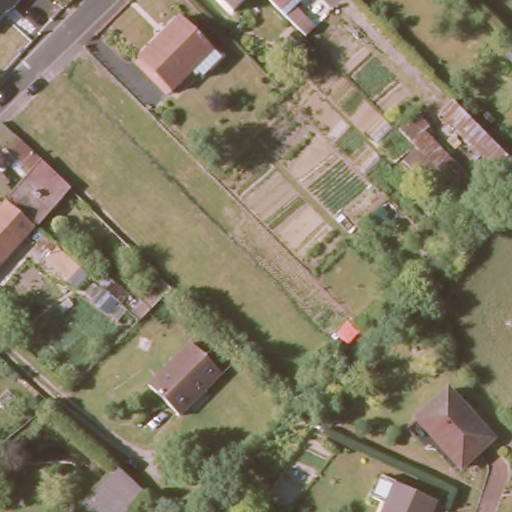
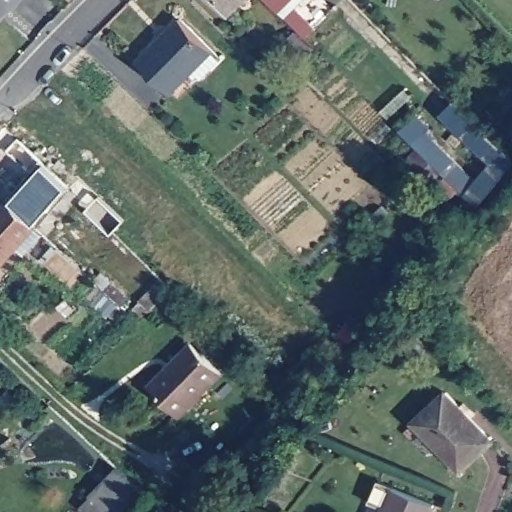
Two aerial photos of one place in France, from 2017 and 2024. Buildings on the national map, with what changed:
unchanged [(5,14),(0,19),(0,0),(21,0),(15,8),(5,14)]
unchanged [(232,11),(221,0),(243,0),(232,11)]
unchanged [(295,2),(315,21),(304,31),(296,23),(273,0),(297,0),(295,2)]
unchanged [(141,57),(184,14),(216,47),(172,89),(141,57)]
unchanged [(461,91),(512,134),(512,158),(500,170),(443,116),(461,91)]
unchanged [(40,170),(15,146),(0,131),(0,130),(10,120),(26,136),(50,160),(74,183),(44,214),(20,190),(40,170)]
unchanged [(20,183),(13,189),(0,177),(0,169),(2,166),(20,183)]
unchanged [(39,220),(0,264),(0,213),(16,195),(39,220)]
unchanged [(75,263),(65,274),(43,254),(53,243),(75,263)]
unchanged [(135,294),(155,272),(166,283),(146,304),(135,294)]
unchanged [(153,386),(194,342),(226,372),(185,416),(153,386)]
unchanged [(447,391),(491,440),(461,468),(415,420),(447,391)]
unchanged [(87,496),(85,493),(114,463),(121,469),(145,491),(123,512),(83,512),(77,506),(87,496)]
unchanged [(437,502),(432,512),(383,512),(397,484),(437,502)]

